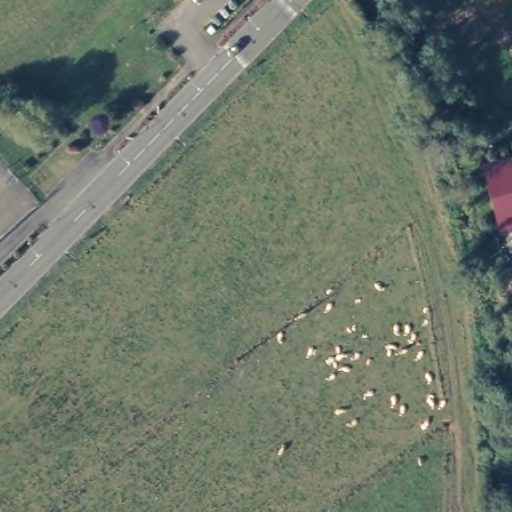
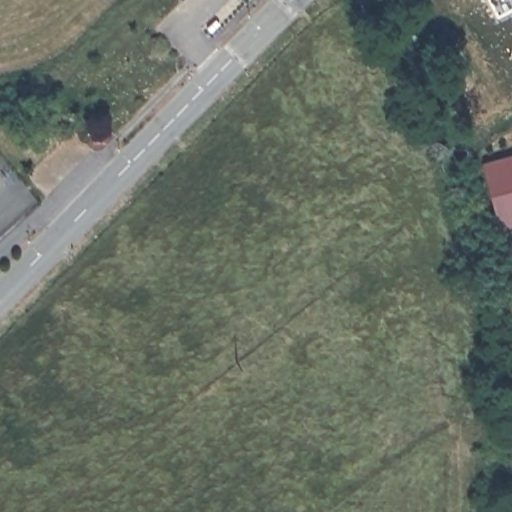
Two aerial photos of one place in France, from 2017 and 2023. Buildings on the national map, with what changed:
unchanged [(493,230),(481,161),(512,154),(512,226),(493,230)]

